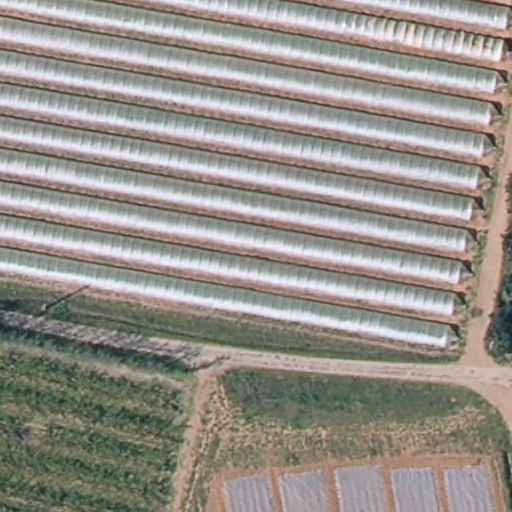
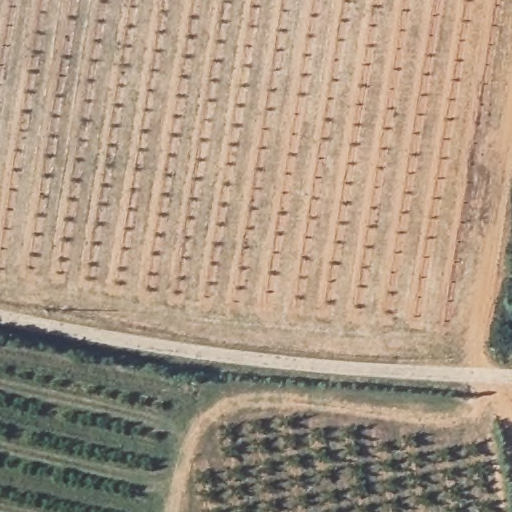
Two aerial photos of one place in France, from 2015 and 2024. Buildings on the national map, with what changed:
demolished [(0,251),(0,0),(512,0),(512,29),(462,332),(0,251)]

